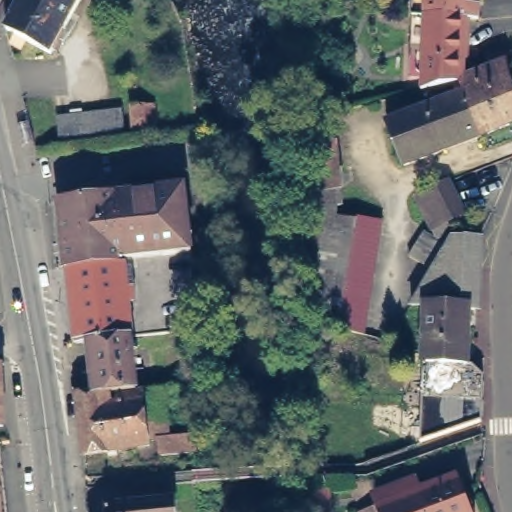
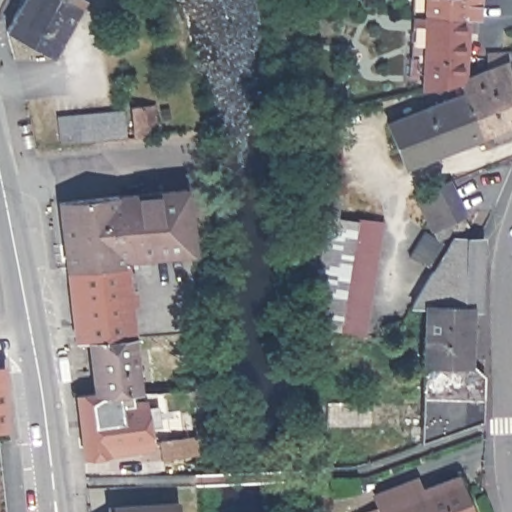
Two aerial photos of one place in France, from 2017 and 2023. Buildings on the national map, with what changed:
unchanged [(15,12),(13,11),(20,0),(80,0),(52,51),(8,26),(15,12)]
unchanged [(458,82),(423,91),(424,59),(412,58),(413,32),(413,15),(413,0),(479,0),(479,20),(465,20),(462,77),(462,81),(458,82)]
unchanged [(512,68),(508,69),(512,83),(512,124),(479,137),(462,94),(458,82),(462,81),(462,77),(487,69),(486,54),(503,54),(512,53),(512,68)]
unchanged [(479,137),(404,167),(386,124),(462,94),(479,137)]
unchanged [(158,132),(133,135),(129,106),(156,104),(158,132)]
unchanged [(126,134),(60,140),(58,112),(123,106),(126,134)]
unchanged [(313,232),(309,193),(316,192),(312,149),(312,147),(304,148),(303,120),(331,113),(334,143),(334,147),(336,147),(344,207),(339,209),(339,219),(359,220),(384,222),(368,335),(311,326),(316,287),(303,286),(313,232)]
unchanged [(463,205),(431,222),(417,192),(450,177),(463,205)]
unchanged [(164,254),(70,265),(68,265),(59,199),(119,192),(120,195),(131,194),(131,191),(186,185),(194,250),(164,254)]
unchanged [(412,300),(432,265),(410,252),(424,227),(436,235),(447,241),(452,232),(481,235),(479,303),(472,303),(470,359),(474,358),(486,368),(484,415),(423,437),(425,302),(412,300)]
unchanged [(70,265),(164,254),(170,305),(129,310),(131,320),(136,320),(138,333),(133,335),(139,387),(98,390),(96,387),(90,338),(81,340),(69,341),(65,307),(76,306),(70,265)]
unchanged [(203,364),(190,363),(191,347),(204,348),(203,364)]
unchanged [(4,428),(0,428),(0,368),(1,367),(4,428)]
unchanged [(164,386),(171,435),(151,438),(143,387),(164,386)]
unchanged [(143,387),(151,438),(151,442),(85,451),(78,390),(96,387),(98,390),(139,387),(143,387)]
unchanged [(163,451),(161,441),(198,437),(198,448),(163,451)]
unchanged [(373,502),(453,471),(469,512),(356,512),(355,508),(373,502)]
unchanged [(313,512),(311,493),(331,492),(334,512),(313,512)]
unchanged [(177,498),(177,512),(111,512),(110,505),(177,498)]

